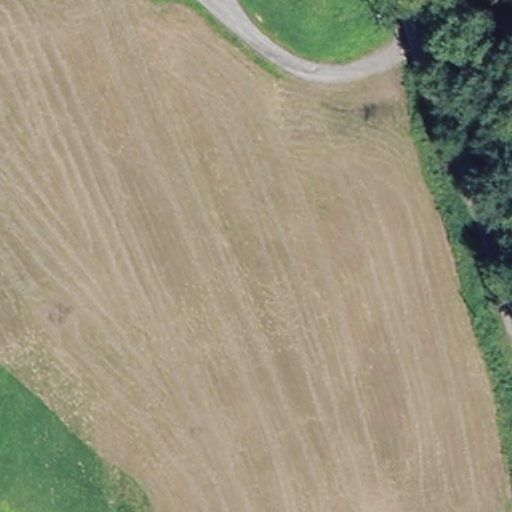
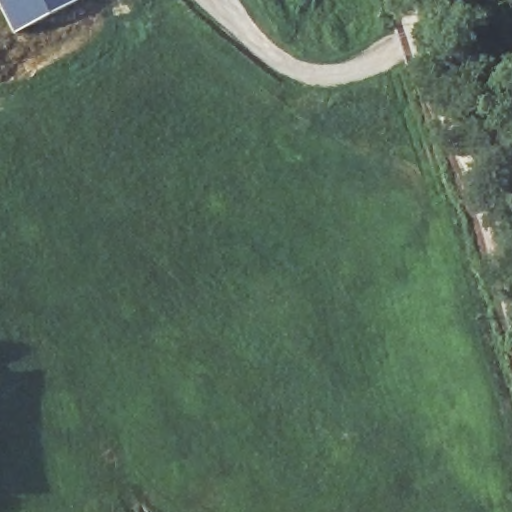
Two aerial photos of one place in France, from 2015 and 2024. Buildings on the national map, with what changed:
new [(14,33),(0,7),(0,0),(75,0),(14,33)]

